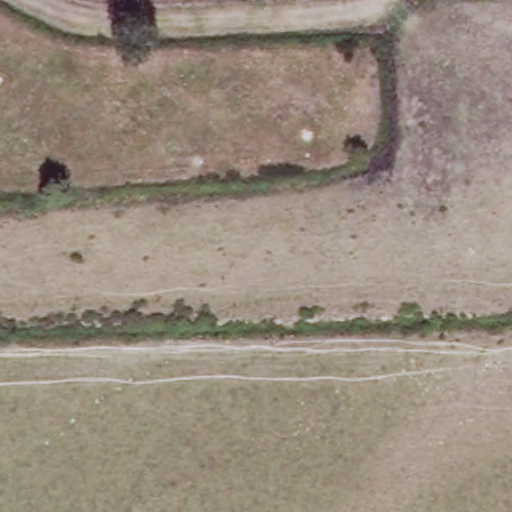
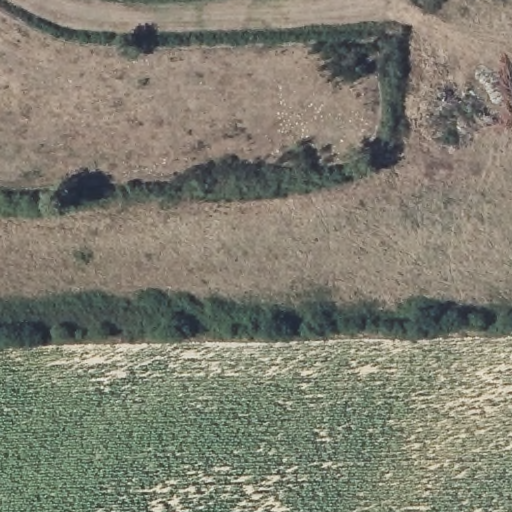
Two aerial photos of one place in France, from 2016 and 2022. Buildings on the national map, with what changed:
[]

